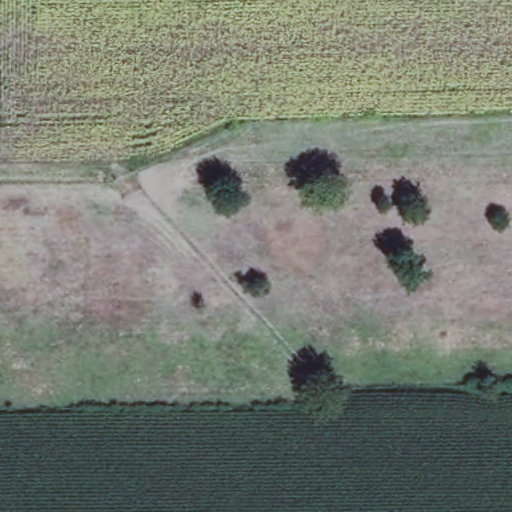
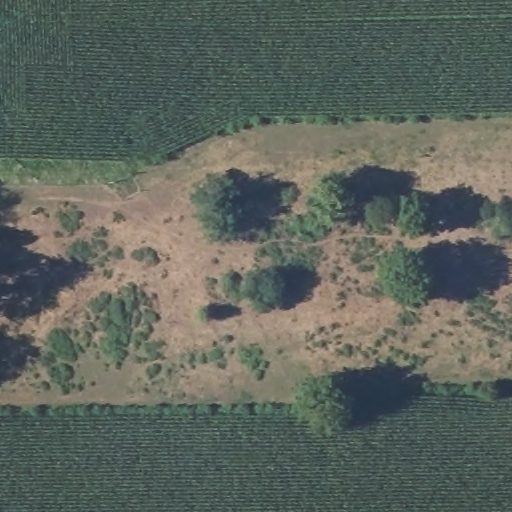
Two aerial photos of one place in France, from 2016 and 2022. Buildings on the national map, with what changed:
[]

